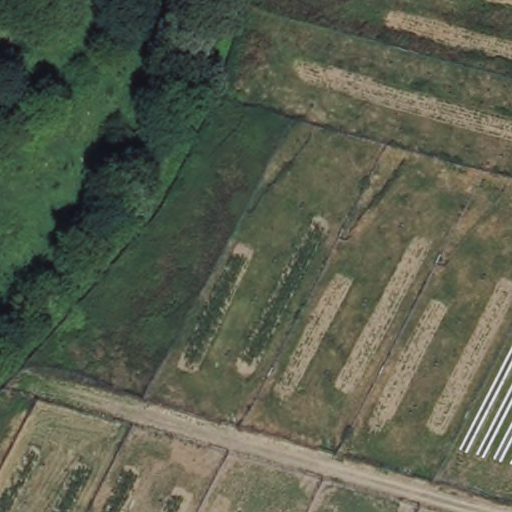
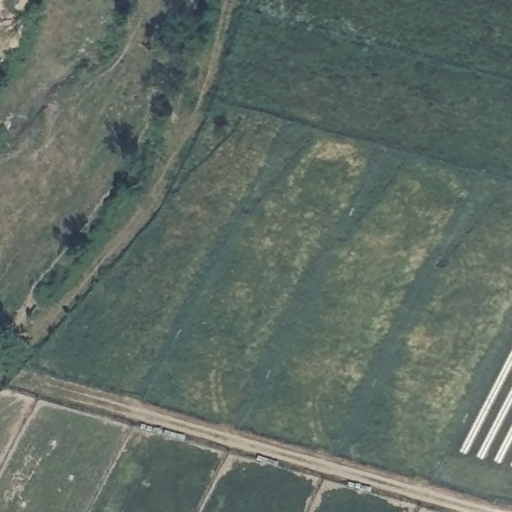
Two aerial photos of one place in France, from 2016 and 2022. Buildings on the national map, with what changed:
[]

